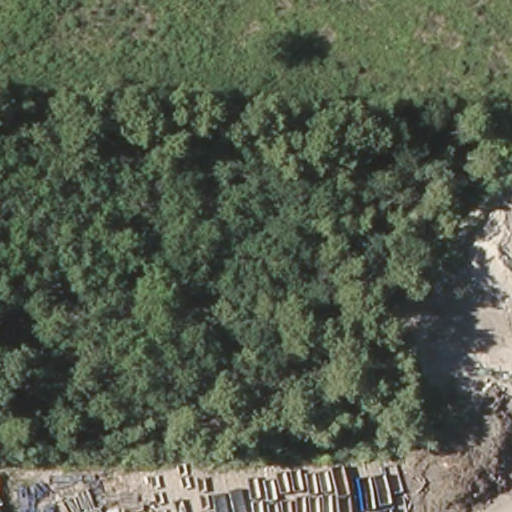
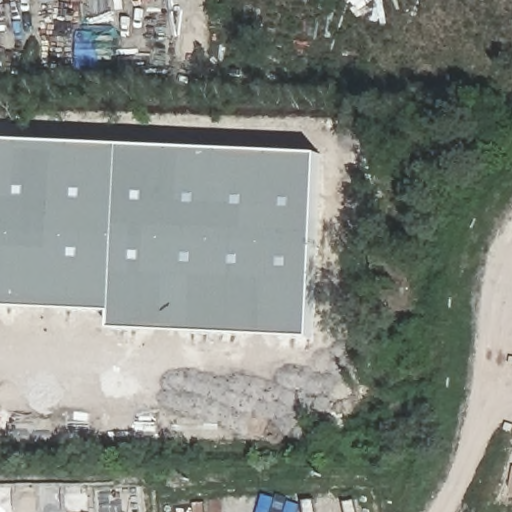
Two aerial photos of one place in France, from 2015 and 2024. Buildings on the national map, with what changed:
new [(112,329),(113,312),(0,307),(0,140),(320,155),(311,338),(112,329)]

